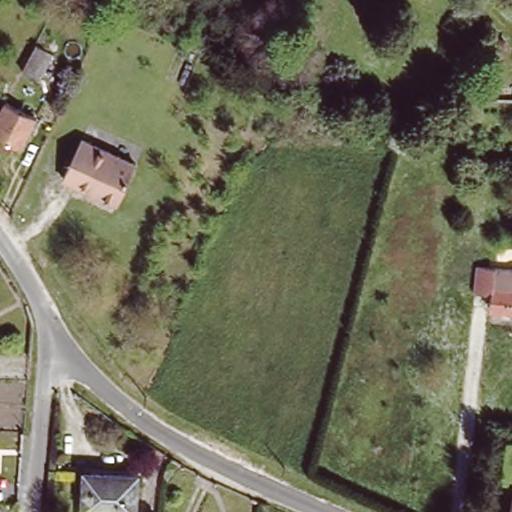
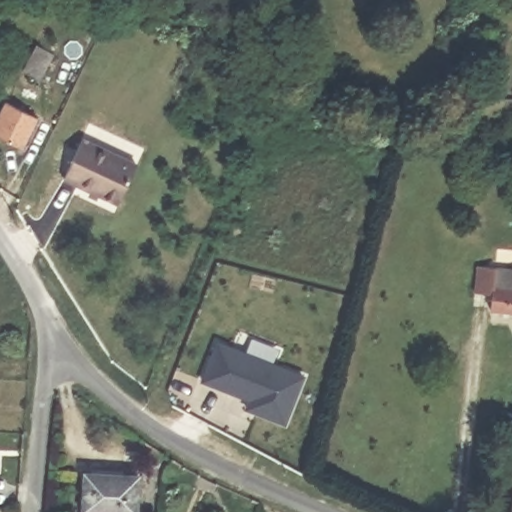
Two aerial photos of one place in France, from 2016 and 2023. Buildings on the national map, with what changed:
unchanged [(500,42),(502,33),(511,35),(508,44),(500,42)]
unchanged [(32,56),(49,64),(37,87),(20,78),(32,56)]
unchanged [(0,120),(10,101),(37,115),(22,146),(0,135),(0,120)]
unchanged [(70,178),(87,141),(140,165),(122,202),(70,178)]
unchanged [(492,310),(498,267),(512,269),(512,313),(492,310)]
new [(219,341),(304,374),(287,420),(257,408),(260,399),(205,378),(219,341)]
unchanged [(92,466),(137,470),(134,512),(83,512),(87,466),(92,466)]
unchanged [(511,512),(512,506),(512,512),(511,512)]

